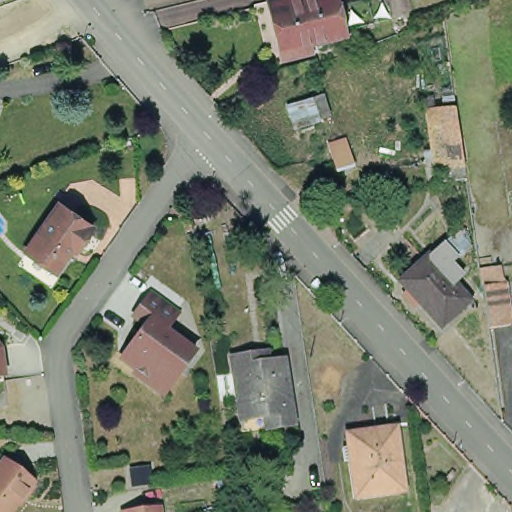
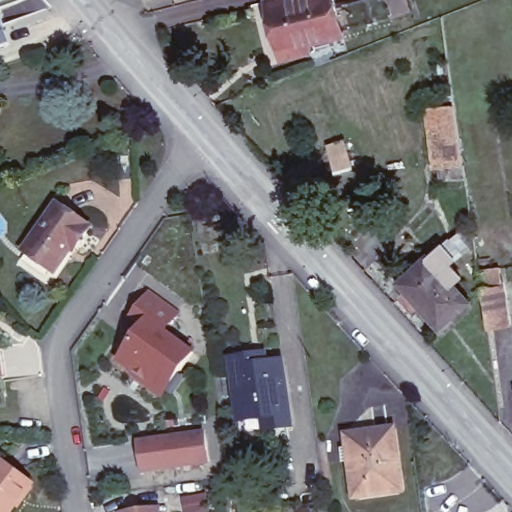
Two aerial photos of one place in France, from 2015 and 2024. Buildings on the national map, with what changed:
unchanged [(292,0),(335,0),(345,39),(311,46),(282,54),(270,5),(292,0)]
unchanged [(282,54),(311,46),(313,56),(270,67),(255,10),(270,5),(282,54)]
unchanged [(433,177),(432,165),(427,166),(418,105),(448,100),(457,162),(460,174),(433,177)]
unchanged [(342,142),(350,169),(333,174),(325,147),(342,142)]
unchanged [(86,225),(70,250),(65,247),(50,268),(22,249),(53,202),(86,225)]
unchanged [(437,240),(450,255),(445,260),(457,272),(447,280),(463,298),(435,325),(392,278),(437,240)]
unchanged [(477,271),(500,268),(502,285),(507,323),(485,326),(480,288),(477,271)]
unchanged [(163,392),(145,380),(135,371),(118,360),(143,326),(132,317),(150,292),(177,312),(163,330),(193,352),(178,372),(175,375),(163,392)]
unchanged [(224,355),(260,350),(262,358),(277,356),(287,421),(259,425),(235,428),(233,416),(224,355)]
unchanged [(403,488),(355,495),(348,456),(344,433),(352,432),(393,426),(403,488)]
new [(142,475),(136,440),(205,430),(211,465),(142,475)]
unchanged [(10,512),(0,512),(0,462),(3,458),(32,481),(10,512)]
unchanged [(165,512),(124,512),(124,511),(165,506),(165,512)]

